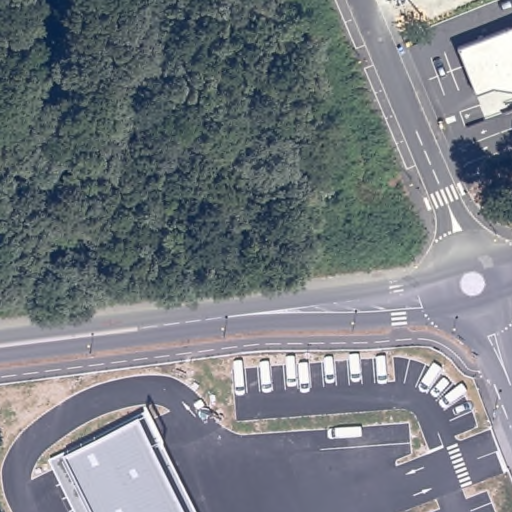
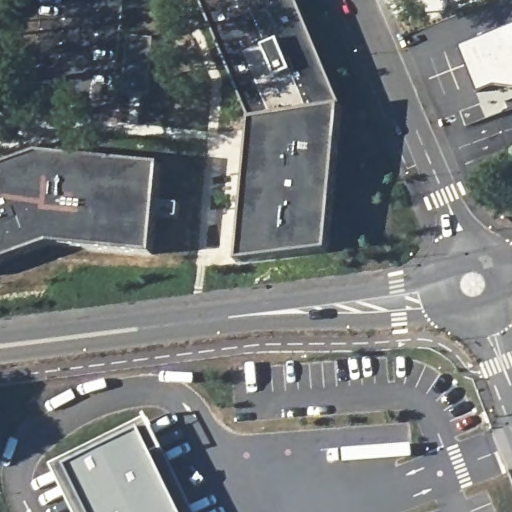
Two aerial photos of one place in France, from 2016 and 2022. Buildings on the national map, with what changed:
new [(335,107),(340,107),(326,251),(233,262),(247,120),(198,0),(293,0),(335,107)]
unchanged [(512,87),(494,84),(475,90),(460,46),(512,25),(512,87)]
new [(127,36),(153,38),(148,95),(122,93),(127,36)]
new [(36,152),(159,164),(150,254),(48,244),(0,261),(0,166),(36,152)]
unchanged [(145,417),(193,512),(73,512),(50,463),(145,417)]

